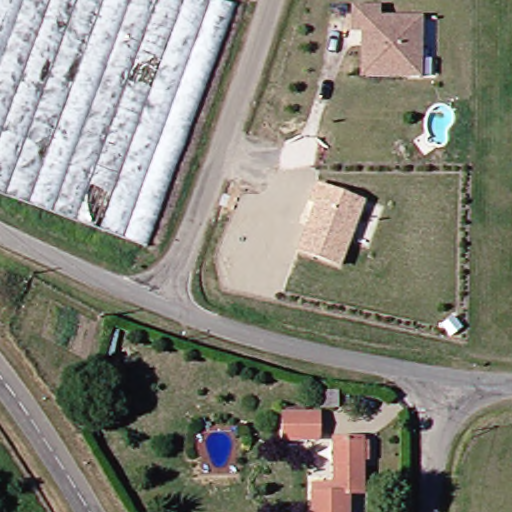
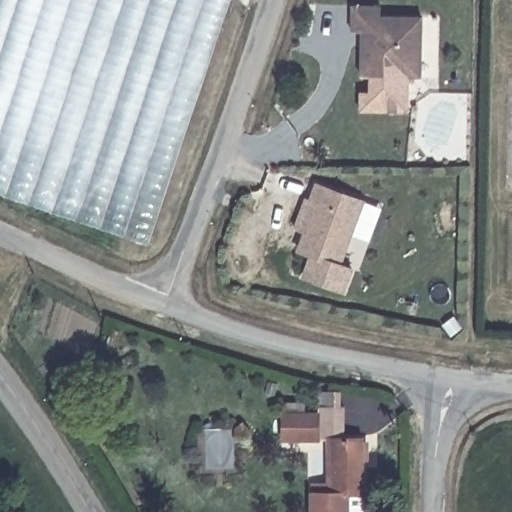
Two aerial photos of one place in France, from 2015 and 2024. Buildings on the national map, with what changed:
unchanged [(0,190),(0,0),(213,0),(225,4),(141,243),(0,190)]
unchanged [(367,70),(370,50),(361,39),(362,25),(353,24),(356,0),(373,0),(385,1),(383,11),(425,16),(419,59),(416,76),(405,75),(367,70)]
new [(360,91),(367,91),(367,70),(405,75),(410,75),(410,111),(360,111),(360,91)]
unchanged [(297,249),(314,200),(308,199),(314,183),(361,199),(339,263),(297,249)]
new [(310,254),(339,263),(355,269),(346,293),(302,276),(310,254)]
unchanged [(336,394),(335,407),(319,406),(319,393),(336,394)]
unchanged [(277,440),(279,417),(287,417),(287,409),(309,409),(318,410),(318,436),(308,435),(307,441),(277,440)]
unchanged [(362,435),(360,491),(345,491),(345,512),(309,512),(310,479),(332,480),(333,434),(359,435),(362,435)]

